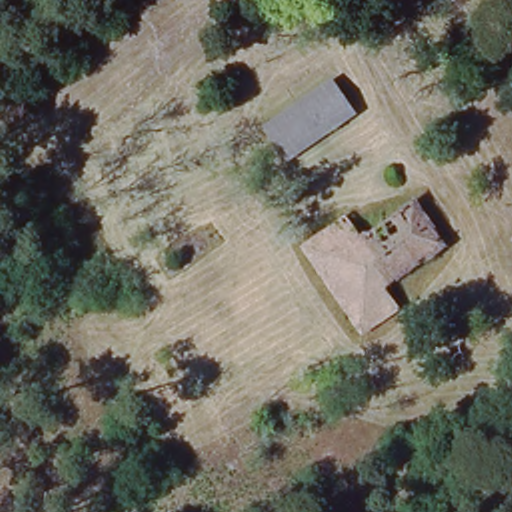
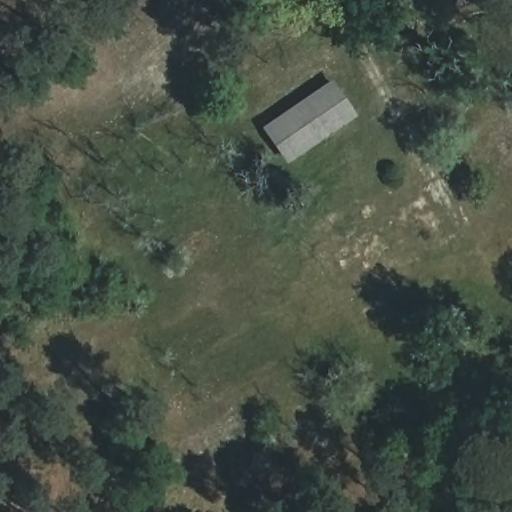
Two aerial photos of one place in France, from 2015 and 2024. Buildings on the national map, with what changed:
unchanged [(332,83),(357,119),(286,164),(262,129),(332,83)]
demolished [(338,260),(363,242),(415,204),(445,249),(386,288),(365,303),(338,260)]
demolished [(199,218),(210,233),(169,263),(157,247),(199,218)]
demolished [(363,242),(338,260),(365,303),(386,288),(402,313),(363,339),(302,247),(345,218),(363,242)]

